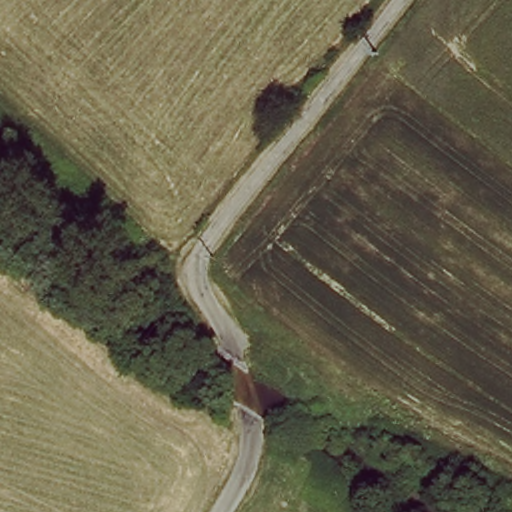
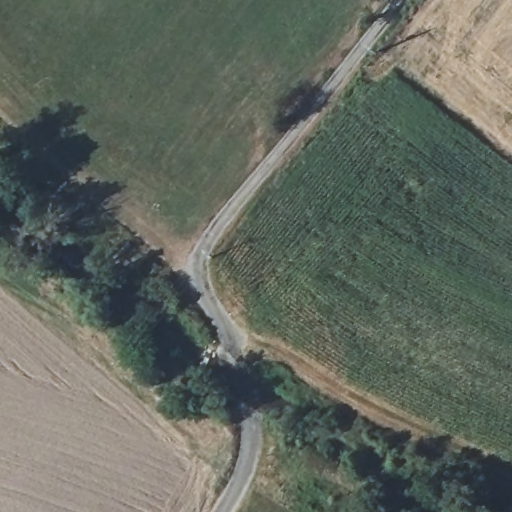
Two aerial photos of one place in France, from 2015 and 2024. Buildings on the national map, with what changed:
[]

